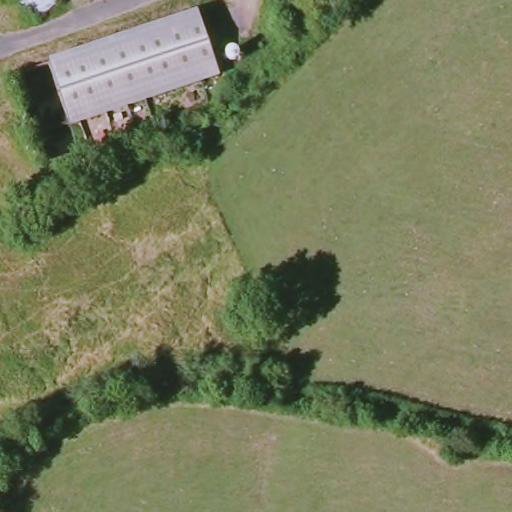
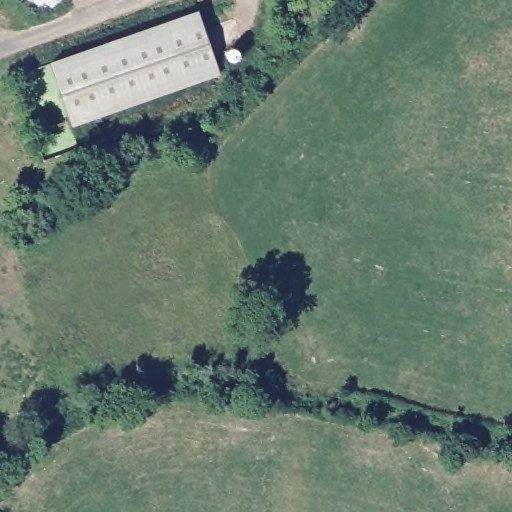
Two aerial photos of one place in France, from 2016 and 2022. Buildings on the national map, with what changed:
unchanged [(34,0),(58,0),(45,11),(34,0)]
unchanged [(204,12),(225,73),(76,125),(55,63),(204,12)]

